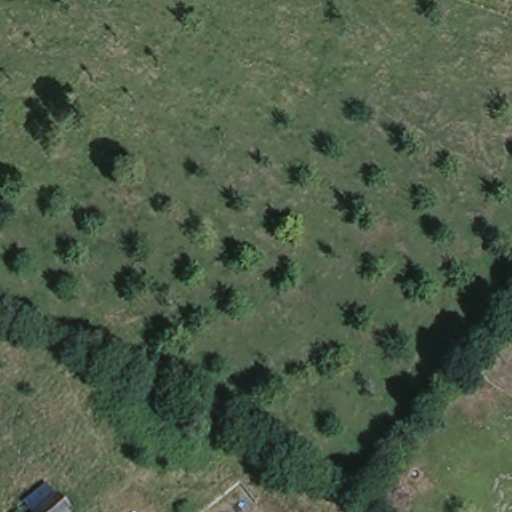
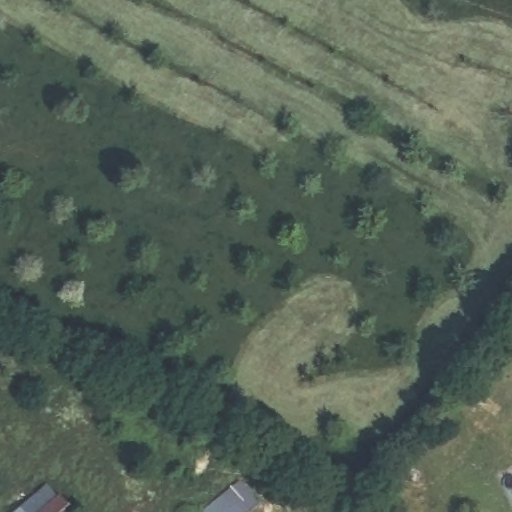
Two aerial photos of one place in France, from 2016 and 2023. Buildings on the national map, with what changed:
new [(240,480),(257,503),(245,512),(201,512),(200,510),(240,480)]
unchanged [(59,495),(71,512),(36,512),(59,495)]

